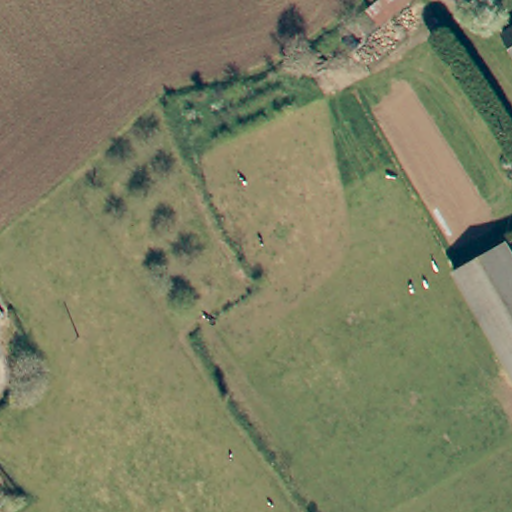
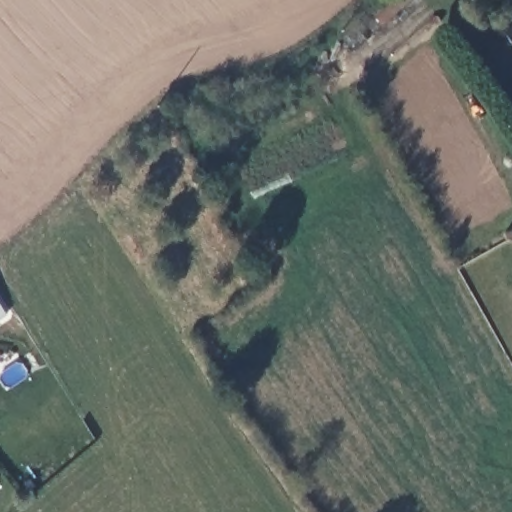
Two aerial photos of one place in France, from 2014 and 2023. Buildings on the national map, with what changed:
unchanged [(354,54),(342,40),(390,0),(418,0),(354,54)]
unchanged [(509,35),(512,33),(512,42),(509,35)]
demolished [(512,245),(512,365),(486,319),(453,262),(506,234),(512,245)]
unchanged [(0,322),(0,304),(9,316),(0,322)]

